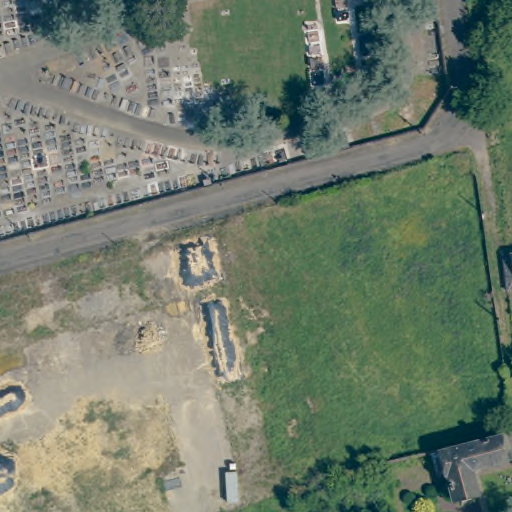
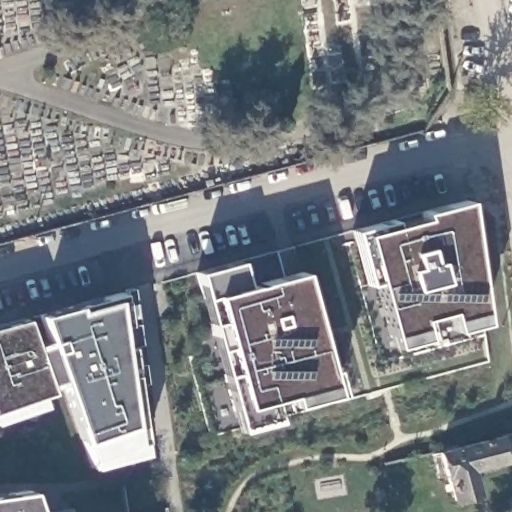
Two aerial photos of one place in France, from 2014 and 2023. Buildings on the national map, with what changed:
new [(482,322),(452,329),(447,310),(418,318),(424,337),(392,345),(375,281),(367,283),(352,230),(391,219),(393,225),(422,217),(421,212),(464,200),(482,322)]
new [(333,393),(292,405),(289,394),(270,399),(277,420),(240,430),(197,272),(239,260),(244,286),(301,271),(333,393)]
demolished [(151,304),(70,326),(21,340),(13,309),(143,275),(151,304)]
new [(24,318),(33,345),(47,340),(38,315),(74,305),(76,309),(114,298),(121,293),(122,287),(129,286),(137,343),(129,345),(144,452),(92,467),(89,459),(61,380),(47,385),(49,392),(39,395),(42,405),(0,420),(0,325),(24,318)]
demolished [(284,481),(243,492),(201,333),(240,322),(284,481)]
demolished [(6,456),(2,443),(166,400),(183,461),(162,466),(165,478),(158,480),(167,512),(0,512),(0,458),(6,456)]
unchanged [(470,493),(446,498),(440,474),(438,475),(433,451),(458,445),(495,435),(494,432),(512,428),(512,457),(464,468),(470,493)]
new [(28,489),(36,512),(0,512),(0,494),(28,489)]

